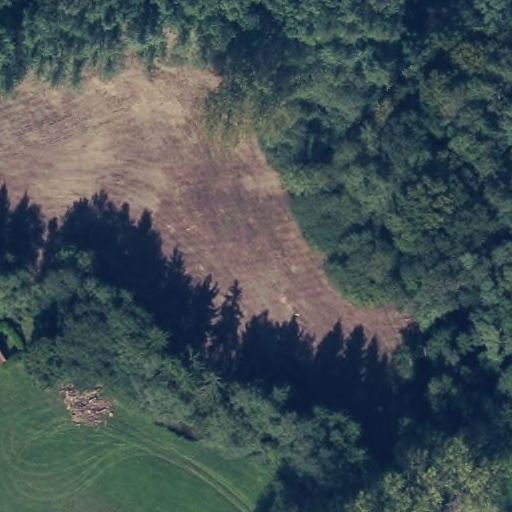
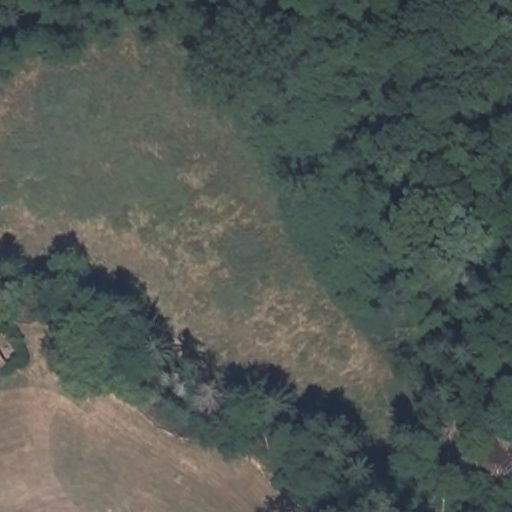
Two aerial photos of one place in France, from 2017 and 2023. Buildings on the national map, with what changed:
unchanged [(0,371),(0,353),(9,365),(0,371)]

